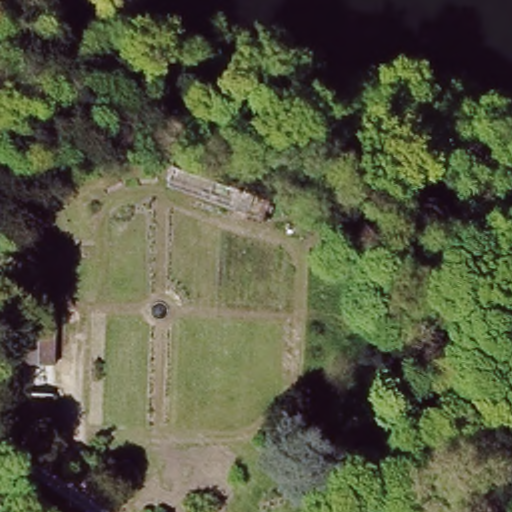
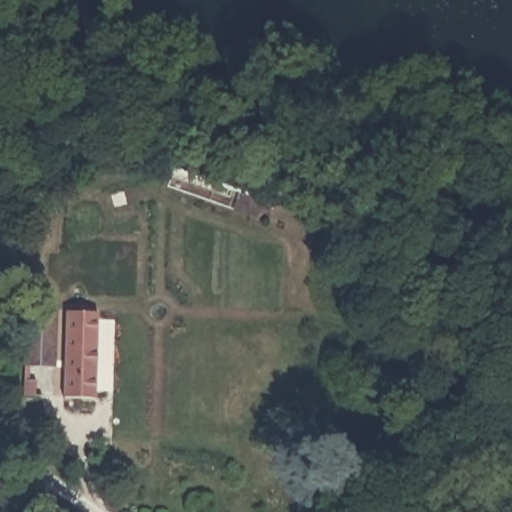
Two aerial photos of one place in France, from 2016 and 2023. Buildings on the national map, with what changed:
unchanged [(165,190),(170,171),(247,192),(242,211),(165,190)]
new [(70,312),(102,313),(99,399),(67,398),(70,312)]
unchanged [(52,398),(19,395),(22,316),(55,314),(52,398)]

